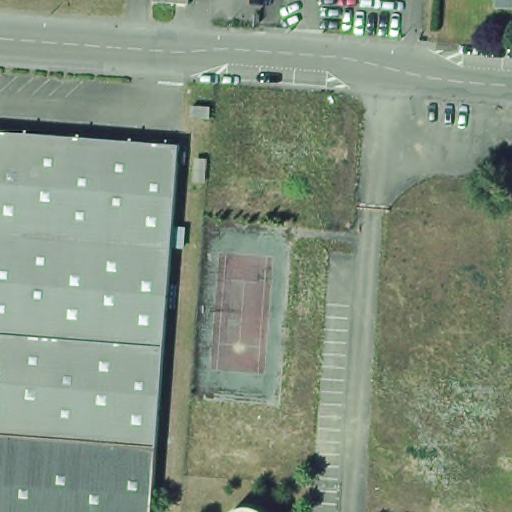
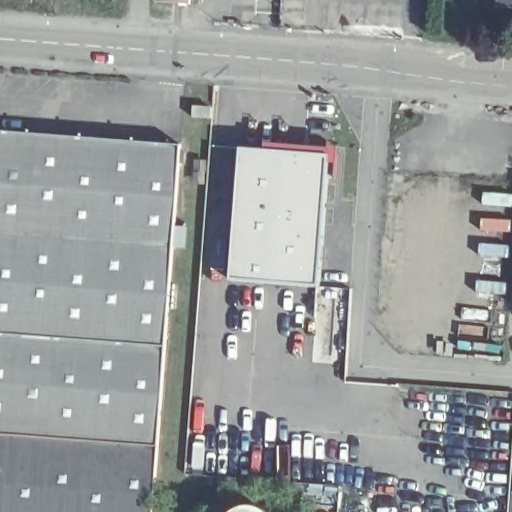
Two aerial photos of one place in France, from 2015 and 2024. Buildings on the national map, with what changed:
unchanged [(145,1),(145,0),(180,0),(179,4),(145,1)]
unchanged [(501,9),(502,0),(512,0),(512,10),(501,9)]
unchanged [(0,126),(177,139),(161,341),(0,329),(0,126)]
new [(318,288),(229,281),(240,149),(329,155),(318,288)]
unchanged [(153,442),(0,430),(0,329),(161,341),(153,442)]
unchanged [(147,512),(0,512),(0,430),(153,442),(147,512)]

